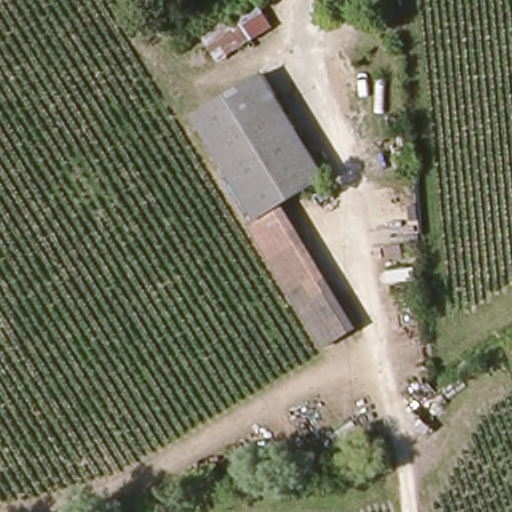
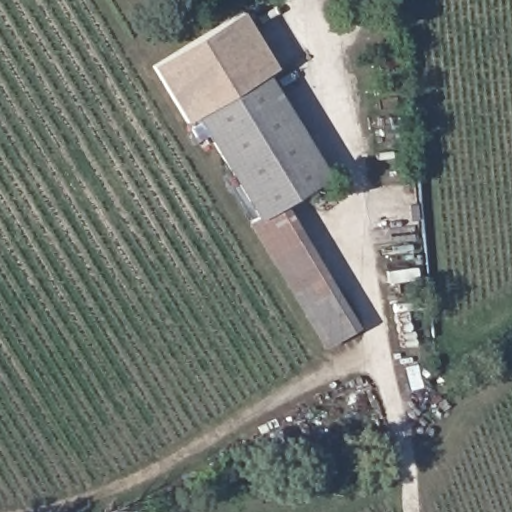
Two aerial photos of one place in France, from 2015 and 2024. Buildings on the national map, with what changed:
demolished [(275,0),(287,21),(267,32),(254,9),(269,0),(275,0)]
new [(204,109),(186,121),(152,65),(242,11),(278,72),(204,109)]
unchanged [(204,109),(278,72),(333,178),(280,204),(257,214),(204,109)]
unchanged [(280,204),(345,331),(318,346),(252,217),(257,214),(280,204)]

